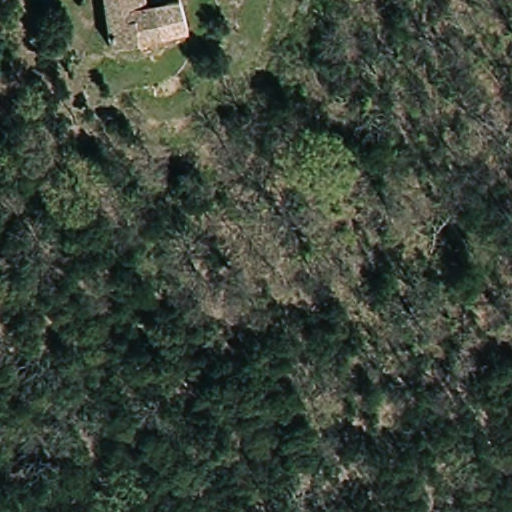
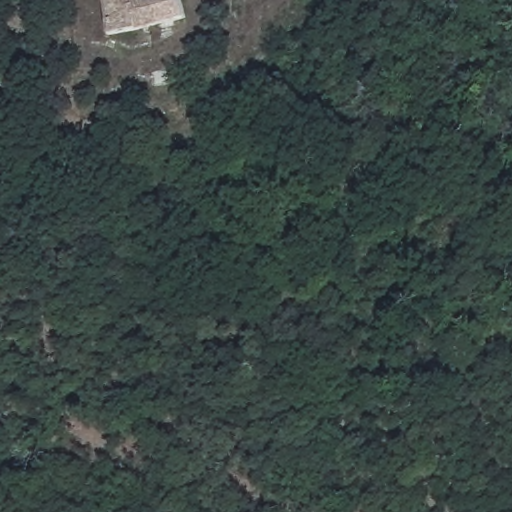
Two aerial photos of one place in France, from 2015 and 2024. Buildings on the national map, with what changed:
unchanged [(110,0),(186,0),(191,17),(115,32),(110,0)]

